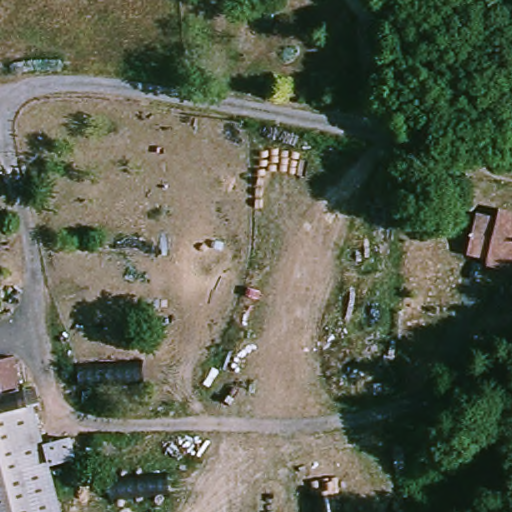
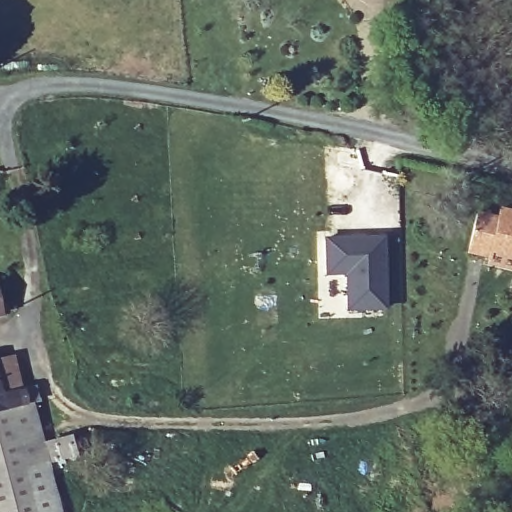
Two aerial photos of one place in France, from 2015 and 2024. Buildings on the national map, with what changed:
unchanged [(495,253),(474,250),(481,213),(502,217),(504,208),(512,209),(512,262),(494,258),(495,253)]
new [(323,238),(384,236),(384,310),(346,312),(344,274),(324,275),(323,238)]
unchanged [(9,314),(0,316),(0,283),(4,283),(9,314)]
unchanged [(12,393),(33,388),(37,403),(0,413),(0,356),(2,356),(12,393)]
unchanged [(70,512),(4,512),(0,498),(0,413),(37,403),(41,402),(70,512)]

